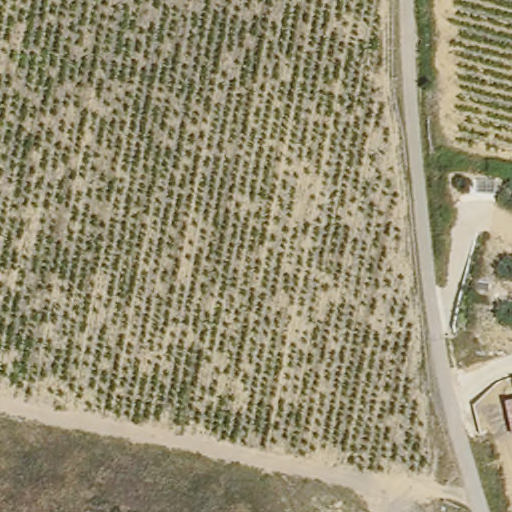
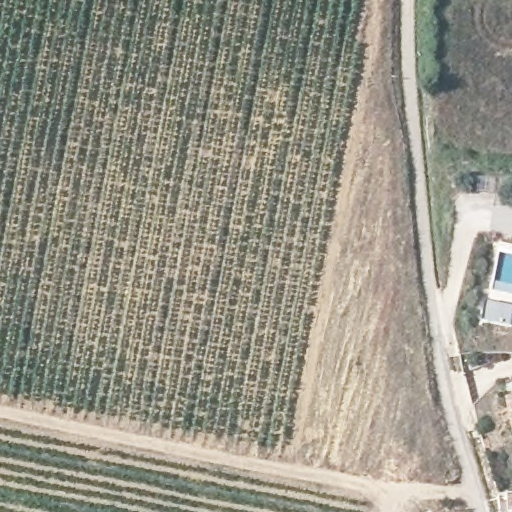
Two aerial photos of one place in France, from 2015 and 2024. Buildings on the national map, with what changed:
new [(512,308),(512,328),(484,325),(486,305),(512,308)]
unchanged [(512,400),(512,423),(507,401),(512,400)]

